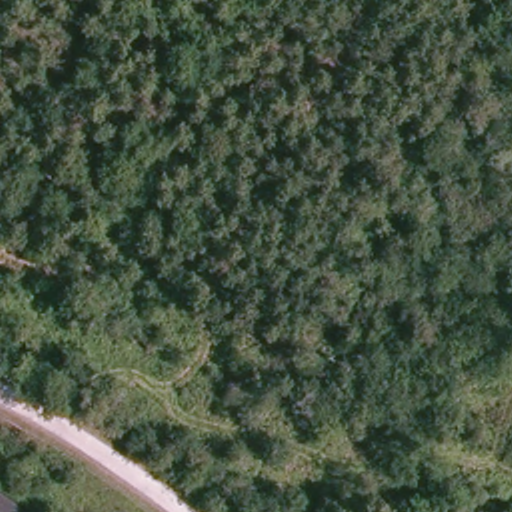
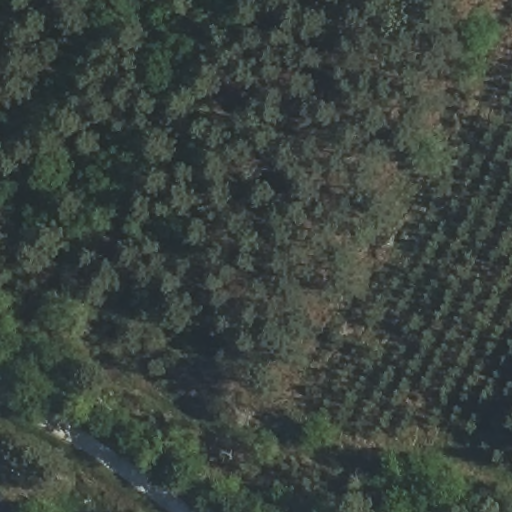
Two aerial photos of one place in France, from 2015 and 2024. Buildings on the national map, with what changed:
unchanged [(0,512),(0,495),(26,512),(0,512)]

